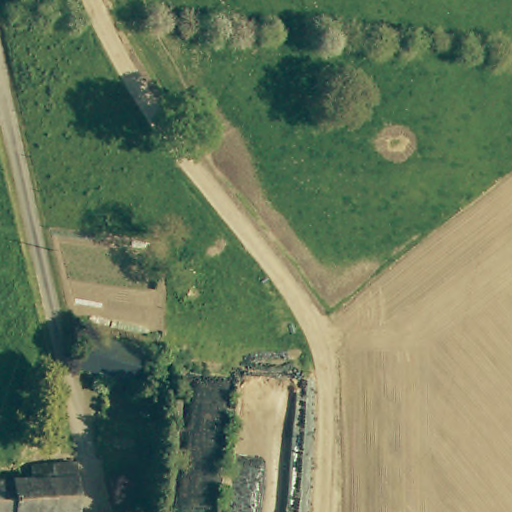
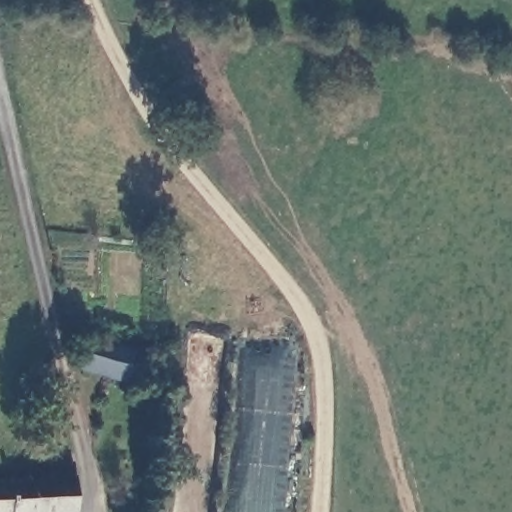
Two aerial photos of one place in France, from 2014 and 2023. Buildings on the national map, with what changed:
unchanged [(82,329),(102,334),(101,341),(135,351),(127,376),(74,361),(82,329)]
unchanged [(30,465),(74,461),(80,512),(0,512),(0,480),(30,477),(30,465)]

